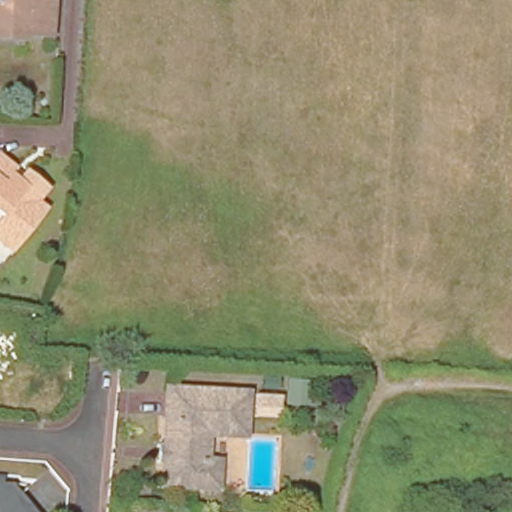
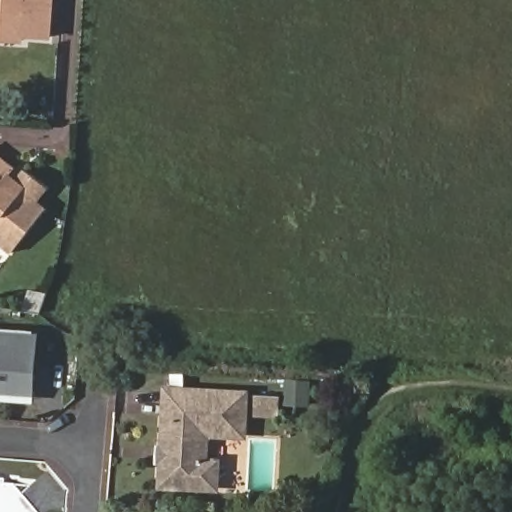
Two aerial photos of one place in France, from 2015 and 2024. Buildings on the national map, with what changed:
unchanged [(0,0),(48,0),(45,34),(24,33),(24,40),(0,39),(0,0)]
unchanged [(30,197),(40,205),(7,247),(0,241),(0,161),(10,169),(16,173),(18,170),(38,185),(30,197)]
new [(0,401),(0,329),(39,333),(34,404),(0,401)]
unchanged [(215,481),(199,480),(157,478),(159,459),(150,458),(151,439),(160,439),(161,385),(241,389),(238,431),(201,429),(200,456),(216,457),(215,481)]
unchanged [(0,485),(9,486),(32,512),(0,512),(0,485)]

